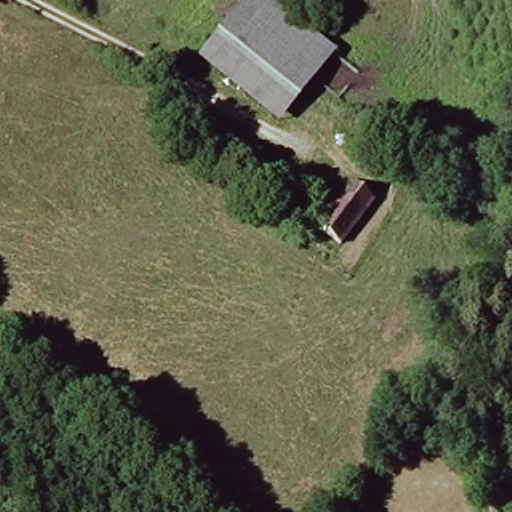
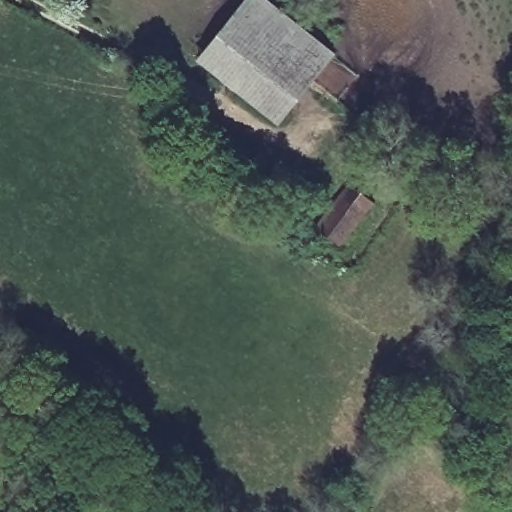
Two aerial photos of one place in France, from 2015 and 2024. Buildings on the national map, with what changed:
unchanged [(203,63),(251,0),(258,0),(328,58),(290,110),(281,122),(251,99),(203,63)]
unchanged [(372,201),(336,244),(313,224),(348,182),(372,201)]

